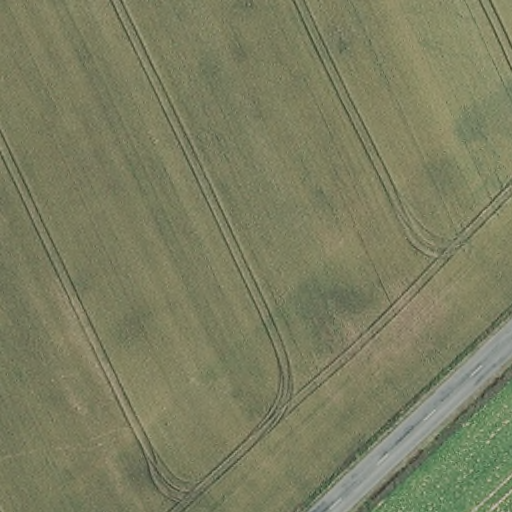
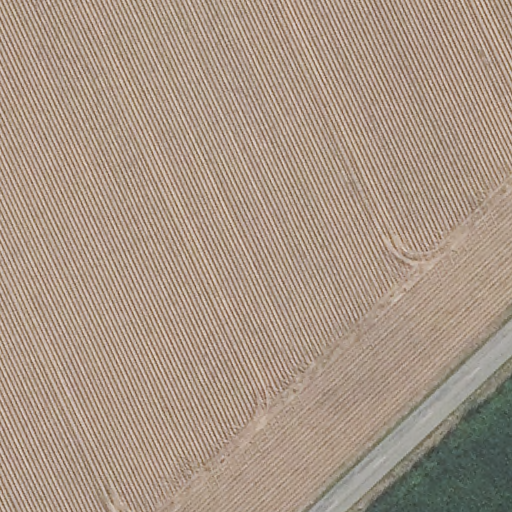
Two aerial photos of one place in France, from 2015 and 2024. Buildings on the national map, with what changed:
[]

